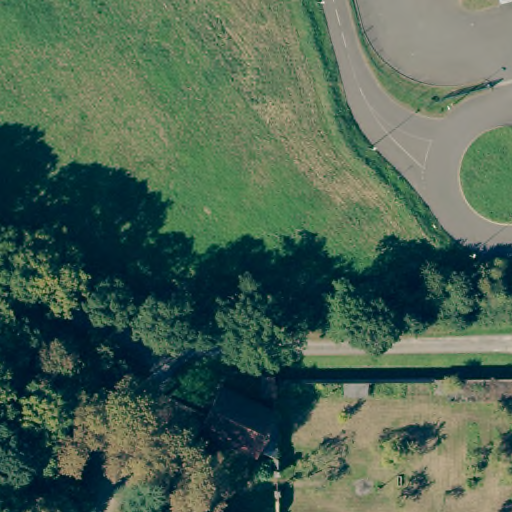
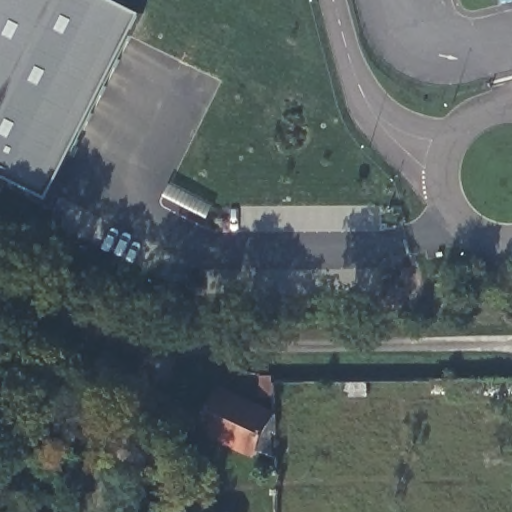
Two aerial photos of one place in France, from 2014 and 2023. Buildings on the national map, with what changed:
new [(0,175),(0,0),(113,0),(141,15),(50,200),(0,175)]
unchanged [(270,395),(257,395),(257,375),(270,375),(270,395)]
unchanged [(219,389),(275,413),(275,460),(258,450),(256,455),(201,430),(207,416),(219,389)]

